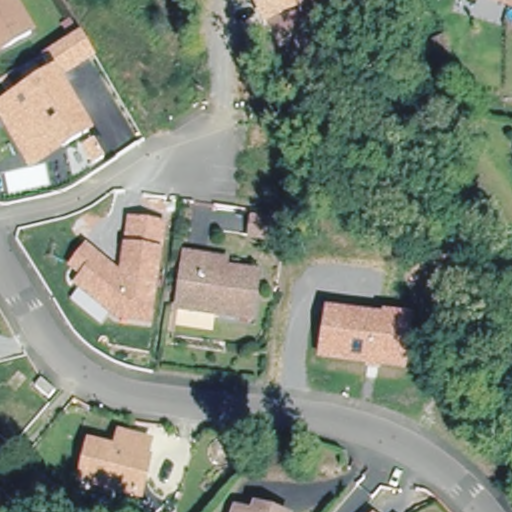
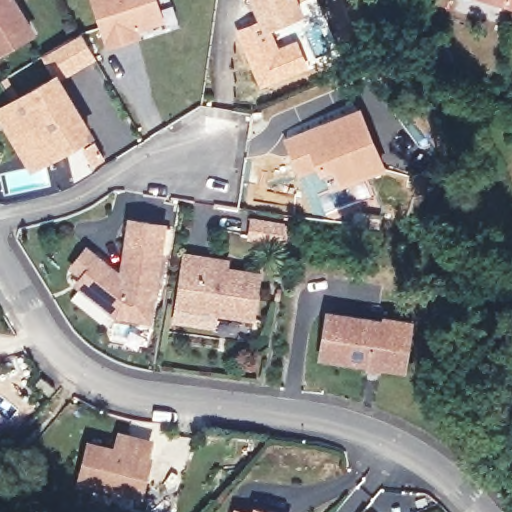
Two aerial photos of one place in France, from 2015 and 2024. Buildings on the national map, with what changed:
unchanged [(32,37),(6,52),(0,56),(0,0),(9,0),(32,37)]
new [(127,40),(110,45),(94,0),(156,0),(163,20),(136,29),(139,35),(127,40)]
unchanged [(305,15),(262,32),(249,0),(298,0),(305,15)]
unchanged [(499,0),(512,0),(512,4),(510,4),(499,0)]
new [(257,20),(262,32),(271,29),(279,47),(297,40),(310,67),(260,89),(236,30),(257,20)]
unchanged [(22,152),(7,125),(0,113),(0,109),(12,102),(56,76),(90,133),(63,149),(32,167),(22,152)]
new [(335,166),(322,172),(319,165),(301,172),(293,154),(299,151),(293,137),(360,110),(384,167),(359,177),(343,184),(335,166)]
unchanged [(280,241),(251,236),(254,219),(282,223),(280,241)]
unchanged [(123,276),(131,220),(164,225),(150,320),(117,315),(78,283),(99,257),(108,265),(106,268),(116,275),(123,276)]
unchanged [(252,317),(178,306),(186,254),(204,256),(227,260),(226,268),(258,273),(252,317)]
unchanged [(382,318),(382,315),(414,318),(409,375),(318,360),(326,309),(382,318)]
unchanged [(55,388),(49,395),(36,383),(42,376),(55,388)]
unchanged [(133,499),(76,485),(85,447),(111,453),(115,438),(146,446),(133,499)]
unchanged [(269,512),(250,512),(253,506),(269,512)]
unchanged [(233,512),(233,511),(236,512),(233,512)]

